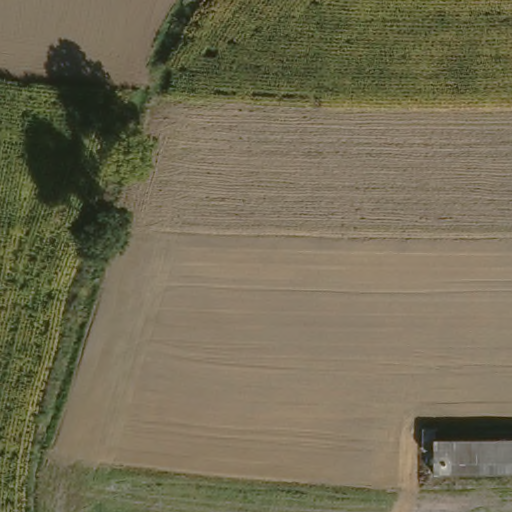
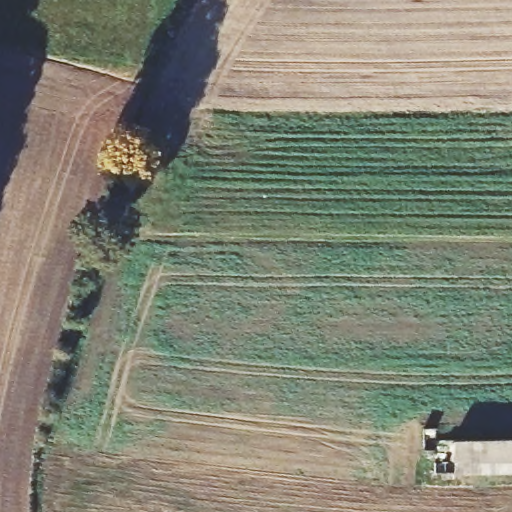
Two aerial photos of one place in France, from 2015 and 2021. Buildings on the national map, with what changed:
unchanged [(512,472),(439,473),(438,450),(512,448),(512,472)]

